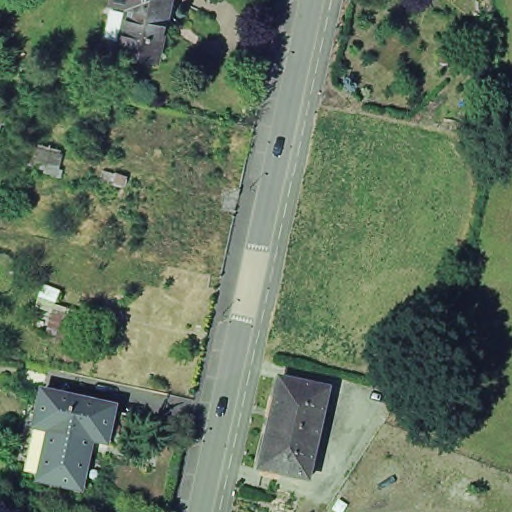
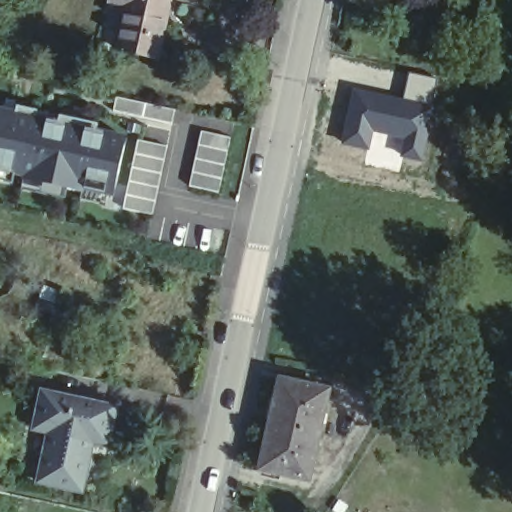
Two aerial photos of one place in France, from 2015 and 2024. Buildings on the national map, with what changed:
unchanged [(116,0),(164,0),(152,55),(113,46),(122,1),(116,0)]
new [(352,89),(403,100),(407,74),(438,80),(433,107),(434,108),(424,164),(401,159),(404,140),(371,135),(368,151),(339,146),(352,89)]
new [(172,124),(143,118),(113,112),(116,98),(146,104),(175,111),(172,124)]
new [(114,199),(0,173),(0,108),(128,136),(114,199)]
new [(201,132),(231,139),(218,193),(189,187),(201,132)]
demolished [(52,179),(17,170),(23,136),(59,149),(52,179)]
unchanged [(138,140),(167,147),(153,215),(123,209),(138,140)]
unchanged [(59,309),(88,324),(78,347),(44,335),(59,309)]
unchanged [(270,381),(318,391),(299,481),(251,470),(270,381)]
unchanged [(37,438),(23,434),(30,398),(103,414),(95,450),(80,447),(70,497),(26,488),(37,438)]

